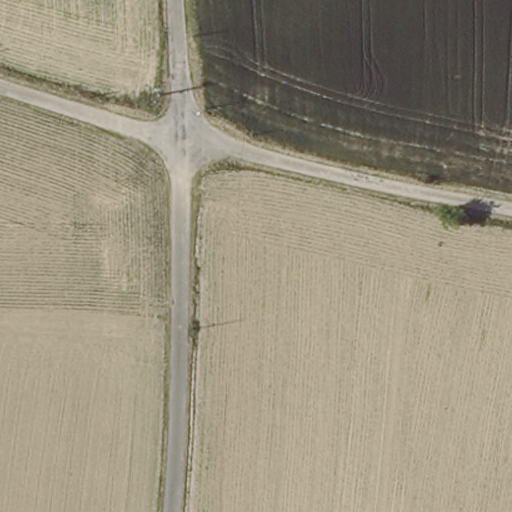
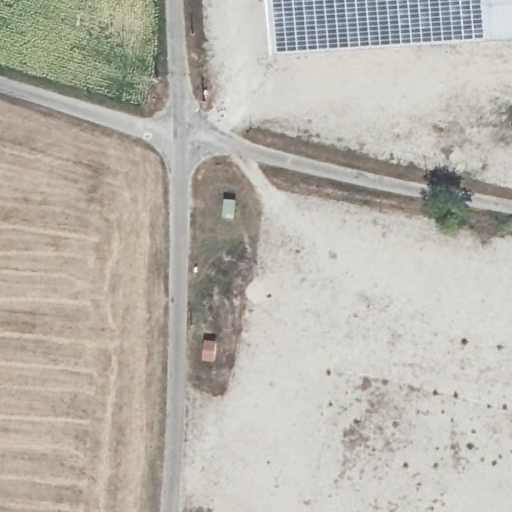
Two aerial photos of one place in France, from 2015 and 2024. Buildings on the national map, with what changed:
new [(273,56),(268,0),(512,0),(512,41),(273,56)]

